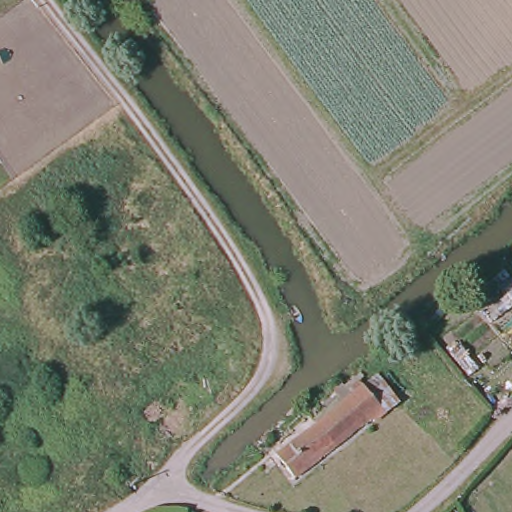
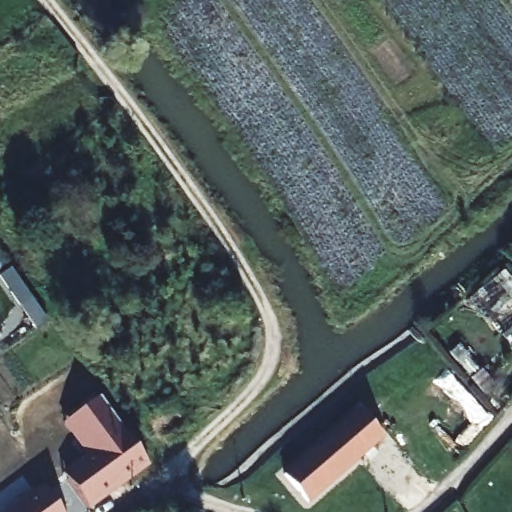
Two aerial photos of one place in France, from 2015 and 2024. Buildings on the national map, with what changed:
new [(47,324),(36,331),(0,281),(0,277),(11,269),(47,324)]
unchanged [(294,478),(275,453),(360,385),(383,415),(372,424),(368,419),(294,478)]
new [(149,467),(90,511),(61,472),(83,455),(61,427),(100,398),(149,467)]
new [(6,512),(43,486),(61,512),(6,512)]

